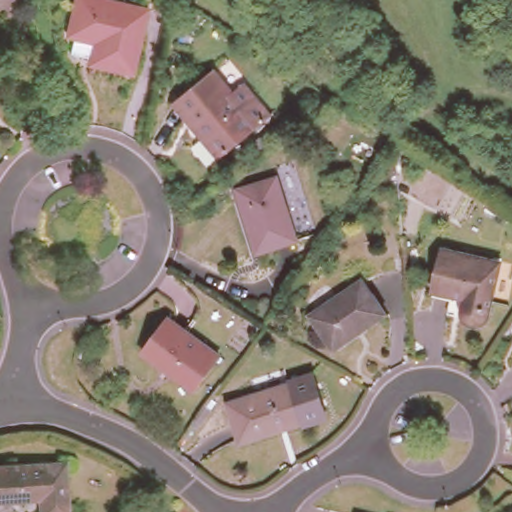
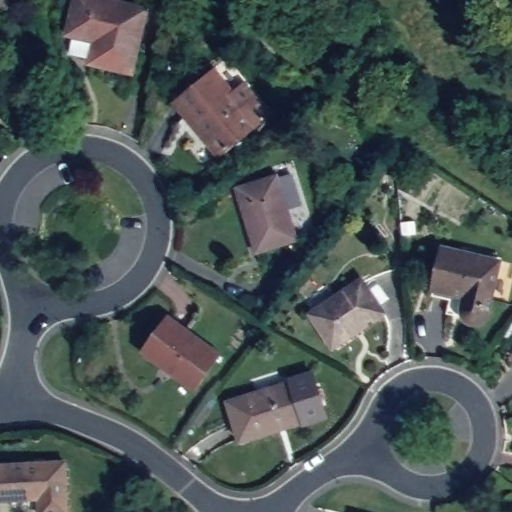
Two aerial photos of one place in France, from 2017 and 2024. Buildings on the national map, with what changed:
unchanged [(12,0),(0,7),(0,0),(12,0)]
unchanged [(67,35),(75,0),(107,0),(146,10),(132,73),(89,63),(90,57),(70,52),(74,36),(67,35)]
unchanged [(232,86),(242,78),(269,110),(259,118),(260,120),(254,124),(219,152),(191,118),(173,96),(177,93),(213,64),(232,86)]
unchanged [(260,245),(242,184),(280,172),(299,234),(260,245)]
unchanged [(491,311),(487,317),(482,319),(475,319),(472,318),(470,316),(467,313),(466,310),(465,307),(466,303),(468,293),(438,286),(447,244),(504,257),(491,311)]
unchanged [(309,310),(360,275),(382,308),(332,344),(309,310)]
unchanged [(168,314),(217,350),(192,384),(143,347),(168,314)]
unchanged [(282,383),(280,380),(303,373),(317,417),(295,424),(294,421),(230,441),(217,402),(282,383)]
unchanged [(72,509),(44,511),(42,494),(0,496),(0,460),(69,457),(72,509)]

